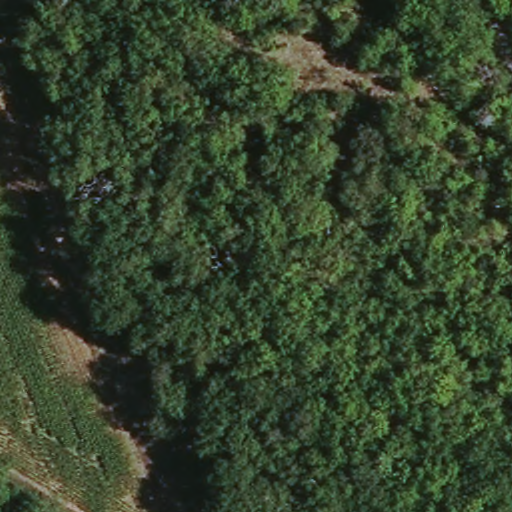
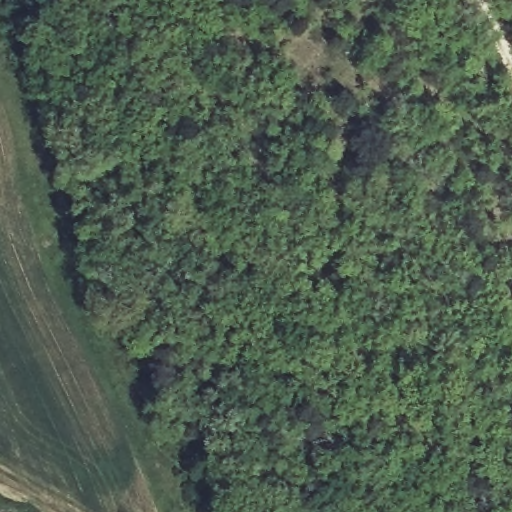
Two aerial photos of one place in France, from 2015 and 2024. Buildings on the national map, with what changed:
[]

